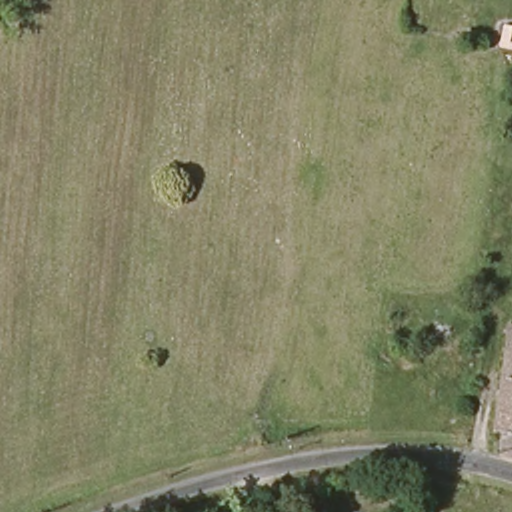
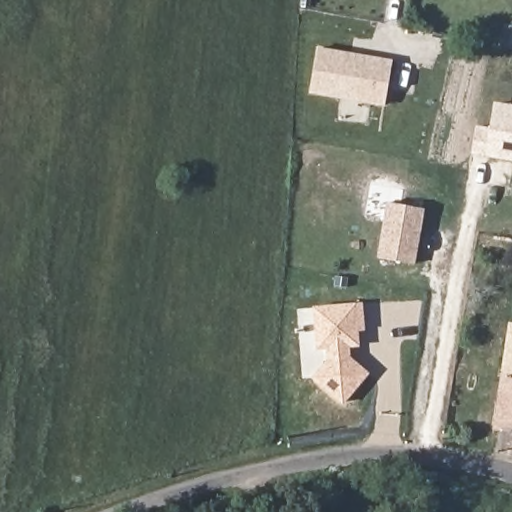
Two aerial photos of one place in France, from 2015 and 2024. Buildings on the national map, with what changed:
new [(502,31),(512,33),(512,49),(498,46),(502,31)]
new [(393,59),(385,107),(310,94),(317,46),(393,59)]
new [(512,105),(512,160),(471,154),(476,125),(488,127),(493,102),(512,105)]
new [(416,264),(377,257),(387,202),(426,209),(416,264)]
new [(362,302),(365,332),(357,332),(358,346),(350,347),(350,357),(370,373),(343,403),(311,379),(326,360),(325,350),(316,350),(313,307),(362,302)]
unchanged [(496,425),(509,316),(512,316),(512,427),(502,426),(496,425)]
unchanged [(512,427),(512,450),(498,446),(502,426),(512,427)]

